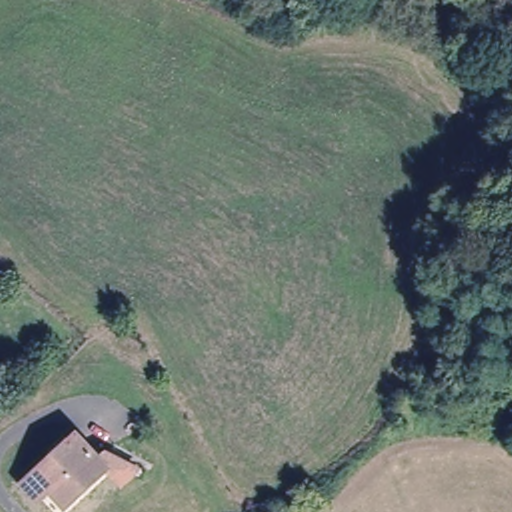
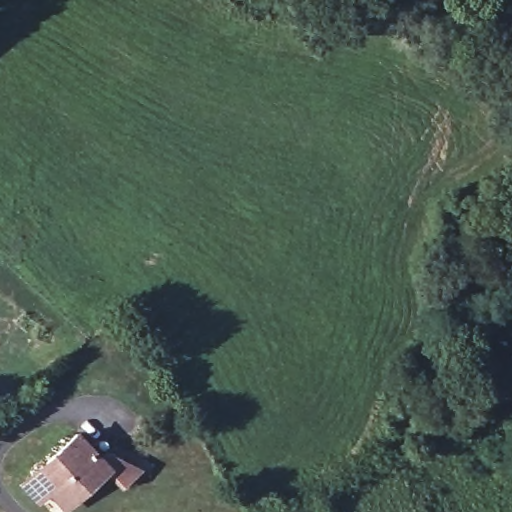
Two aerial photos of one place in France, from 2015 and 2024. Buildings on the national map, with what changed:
unchanged [(27,472),(39,462),(75,426),(106,457),(70,493),(54,478),(43,489),(27,472)]

